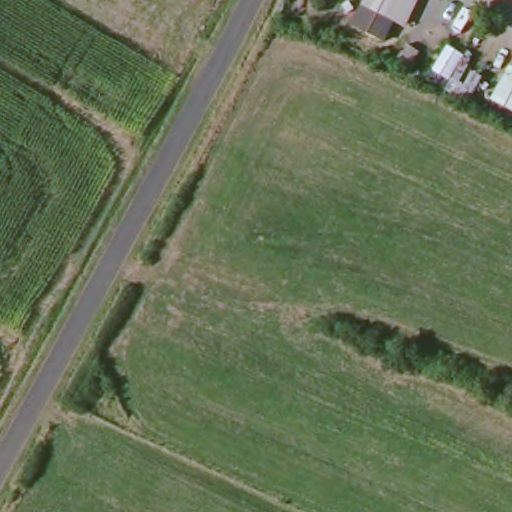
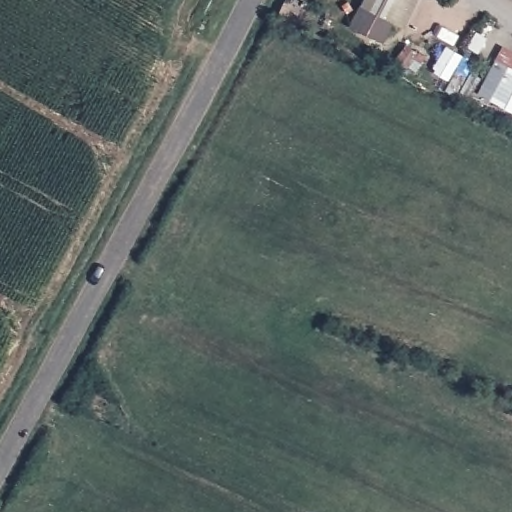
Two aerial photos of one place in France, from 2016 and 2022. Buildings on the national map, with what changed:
unchanged [(389,30),(379,25),(351,10),(356,0),(404,0),(389,30)]
unchanged [(489,103),(507,66),(512,69),(512,116),(489,103)]

